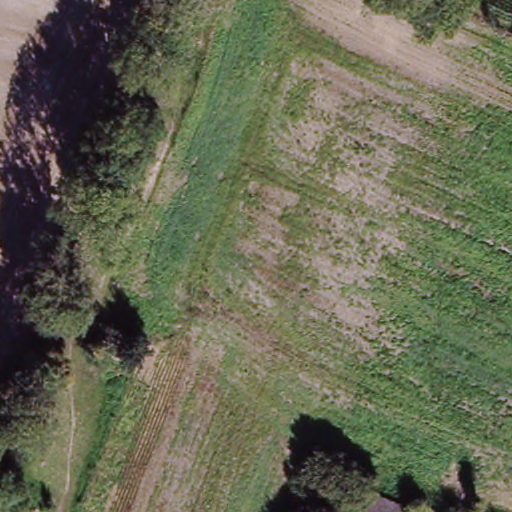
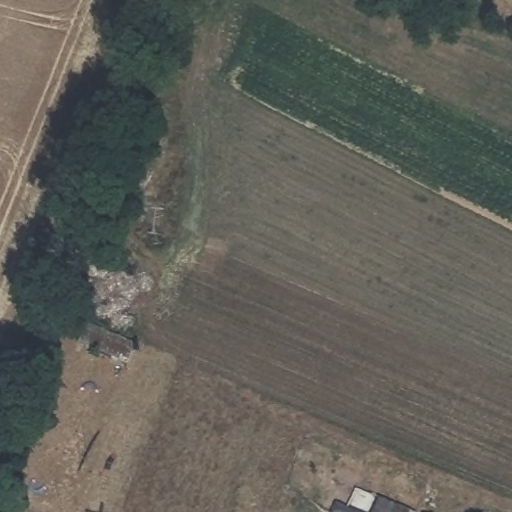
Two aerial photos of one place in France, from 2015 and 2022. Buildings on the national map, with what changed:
unchanged [(350,483),(416,512),(337,512),(350,483)]

